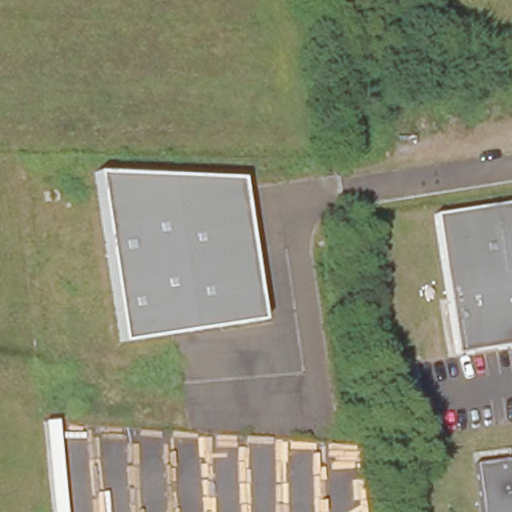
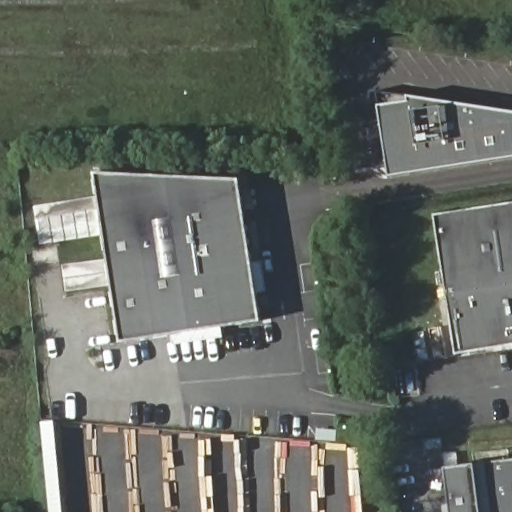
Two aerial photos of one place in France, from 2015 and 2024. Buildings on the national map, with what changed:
new [(379,106),(407,101),(407,94),(512,111),(512,156),(389,177),(379,106)]
unchanged [(261,321),(120,344),(93,172),(238,180),(261,321)]
unchanged [(435,216),(512,203),(512,345),(457,353),(435,216)]
unchanged [(512,456),(512,512),(477,512),(471,462),(512,456)]

